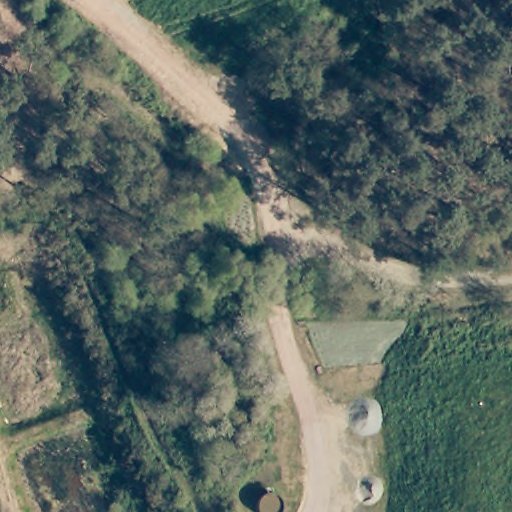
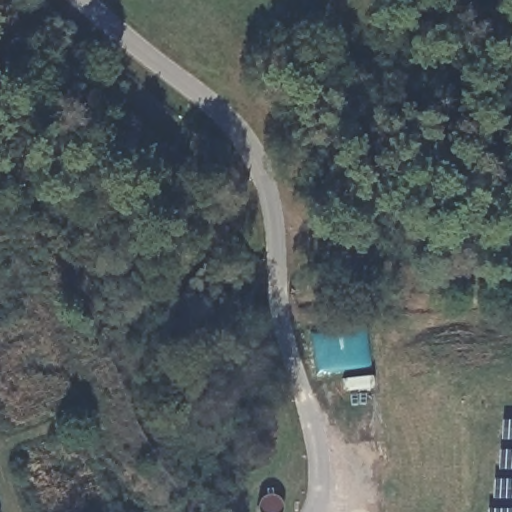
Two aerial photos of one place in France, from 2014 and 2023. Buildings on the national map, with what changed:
[]

